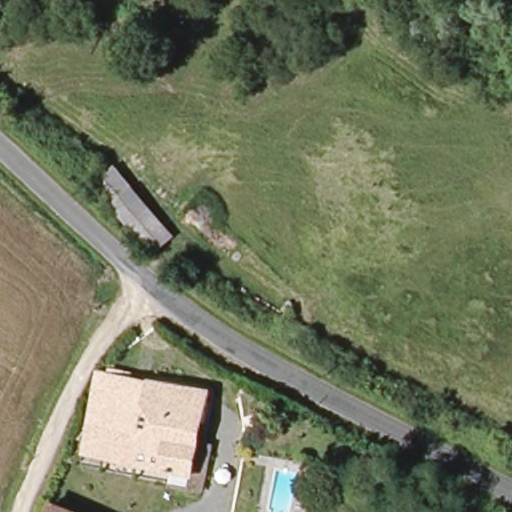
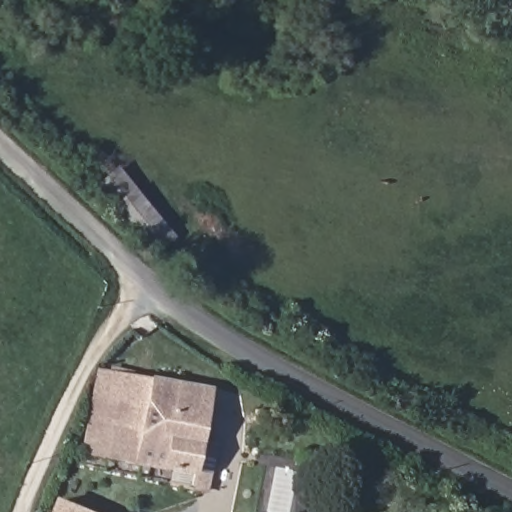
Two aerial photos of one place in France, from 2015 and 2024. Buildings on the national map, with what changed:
unchanged [(166,224),(144,242),(111,201),(136,187),(166,224)]
unchanged [(204,392),(192,472),(84,450),(93,376),(97,367),(204,392)]
unchanged [(53,502),(75,512),(49,512),(53,502)]

